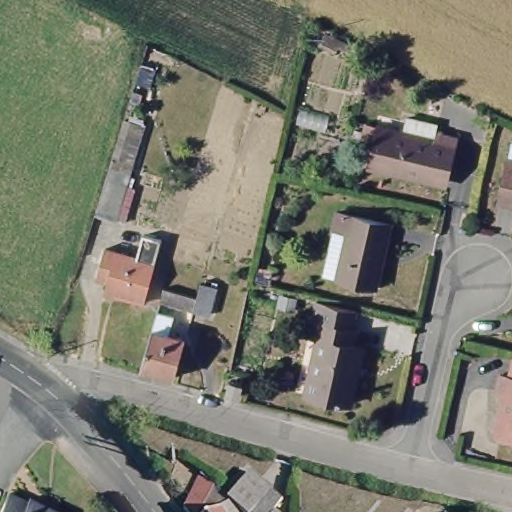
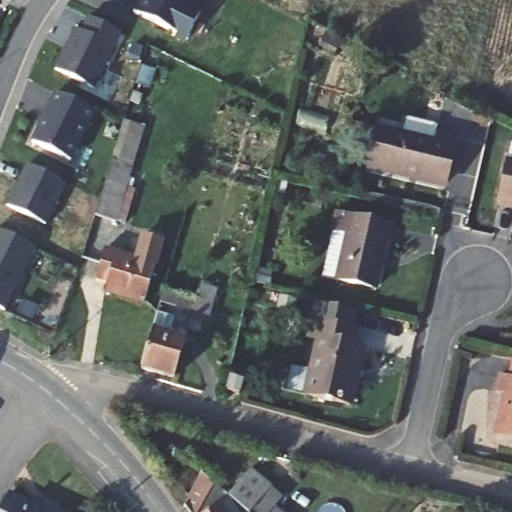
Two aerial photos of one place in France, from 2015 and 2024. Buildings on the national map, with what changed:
new [(188,6),(199,12),(184,38),(132,8),(137,0),(191,0),(188,6)]
new [(114,26),(87,81),(48,63),(68,21),(74,24),(80,10),(114,26)]
new [(90,106),(67,155),(28,137),(52,87),(90,106)]
unchanged [(447,131),(445,136),(455,138),(444,185),(407,175),(404,180),(369,171),(381,123),(432,134),(435,129),(447,131)]
unchanged [(120,222),(97,215),(127,124),(149,130),(120,222)]
unchanged [(499,199),(510,158),(512,159),(512,203),(499,199)]
new [(62,177),(42,219),(2,200),(23,159),(62,177)]
unchanged [(372,290),(335,282),(350,219),(387,227),(372,290)]
new [(0,304),(0,227),(31,241),(0,304)]
unchanged [(159,242),(143,299),(95,287),(105,247),(137,255),(142,239),(159,242)]
unchanged [(189,298),(182,319),(165,316),(173,293),(189,298)]
unchanged [(217,327),(190,321),(197,300),(205,302),(206,295),(224,299),(217,327)]
unchanged [(354,358),(362,360),(349,418),(309,410),(322,353),(310,350),(315,332),(317,318),(357,327),(353,342),(357,344),(354,358)]
unchanged [(182,382),(147,373),(157,337),(164,323),(178,328),(174,341),(192,348),(182,382)]
unchanged [(497,392),(500,376),(506,377),(510,358),(512,359),(512,437),(495,433),(505,394),(497,392)]
unchanged [(286,498),(279,508),(284,512),(245,512),(232,501),(252,472),(286,498)]
unchanged [(205,512),(189,512),(182,503),(200,476),(216,489),(205,512)]
unchanged [(27,499),(29,495),(62,512),(1,512),(11,490),(27,499)]
unchanged [(219,512),(229,506),(233,512),(219,512)]

